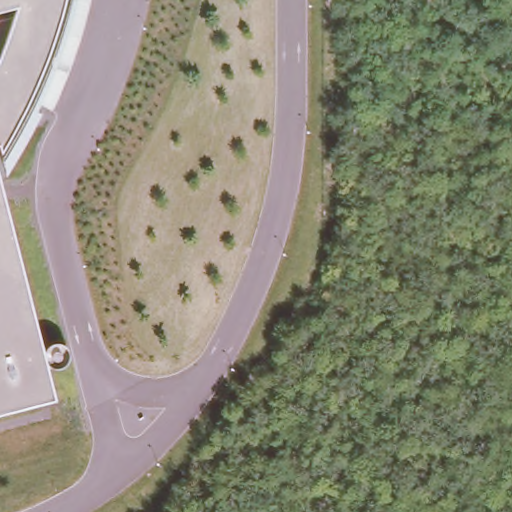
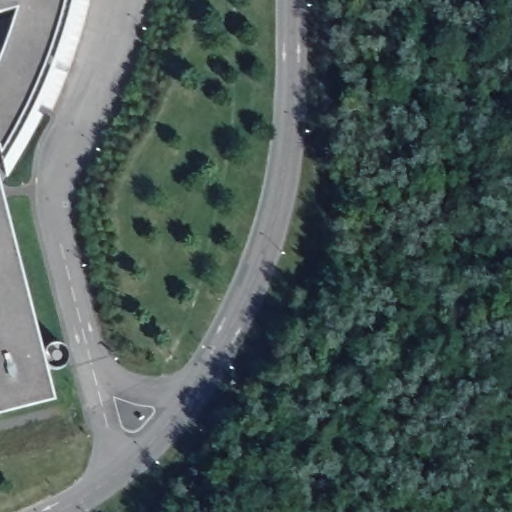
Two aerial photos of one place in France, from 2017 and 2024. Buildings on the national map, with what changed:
unchanged [(70,21),(62,46),(50,75),(39,102),(27,126),(16,146),(5,164),(0,169),(0,53),(16,9),(0,13),(0,0),(75,0),(70,21)]
unchanged [(53,400),(0,414),(0,191),(53,400)]

